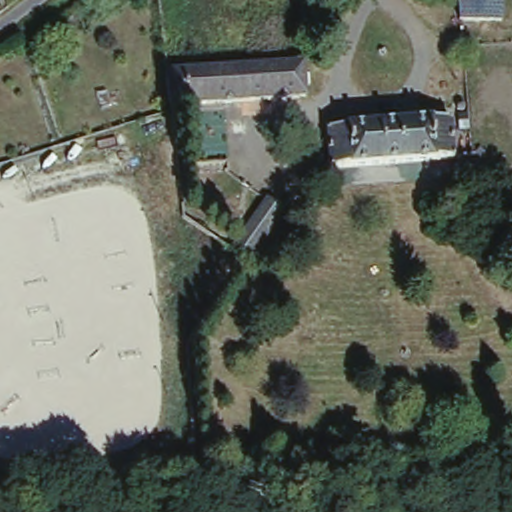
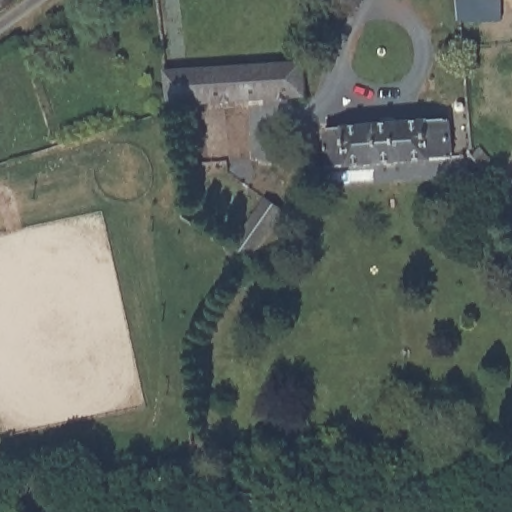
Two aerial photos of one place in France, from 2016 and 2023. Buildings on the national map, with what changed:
unchanged [(504,0),(503,18),(460,20),(460,0),(504,0)]
unchanged [(308,64),(311,97),(190,103),(166,105),(163,71),(308,64)]
unchanged [(453,122),(455,161),(337,164),(337,126),(453,122)]
unchanged [(220,172),(221,181),(190,185),(189,176),(220,172)]
unchanged [(254,217),(282,180),(302,194),(273,231),(254,217)]
unchanged [(219,287),(224,281),(212,271),(254,217),(273,231),(226,292),(219,287)]
unchanged [(151,501),(151,495),(142,495),(142,485),(152,483),(151,474),(189,472),(190,500),(151,501)]

